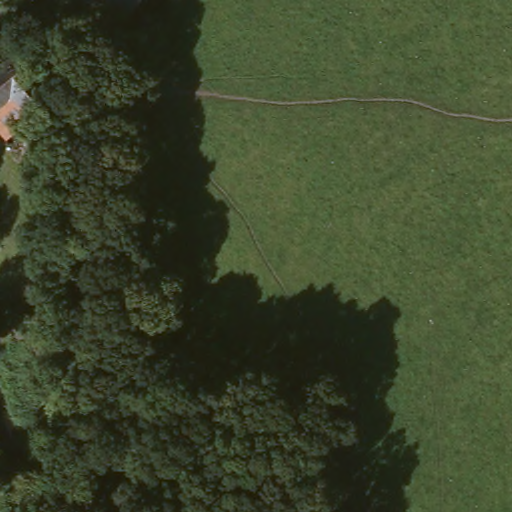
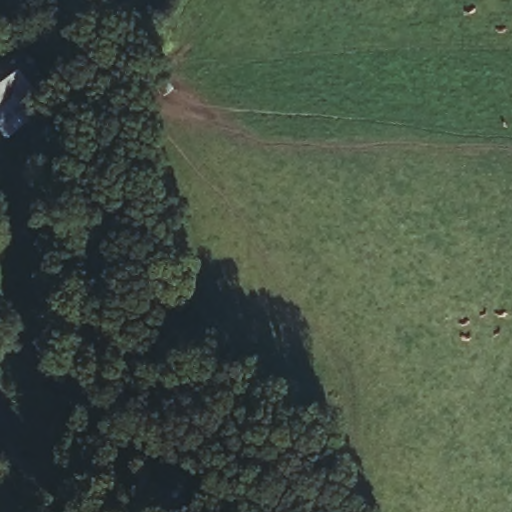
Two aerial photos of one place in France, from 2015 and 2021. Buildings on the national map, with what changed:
unchanged [(118,28),(68,0),(137,0),(118,28)]
unchanged [(31,107),(11,90),(0,103),(0,48),(2,45),(28,69),(48,86),(31,107)]

